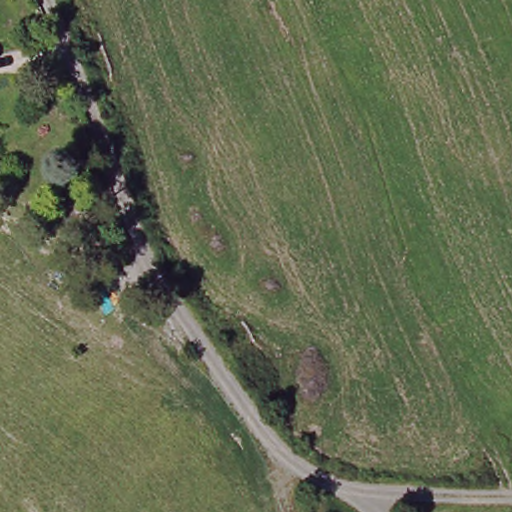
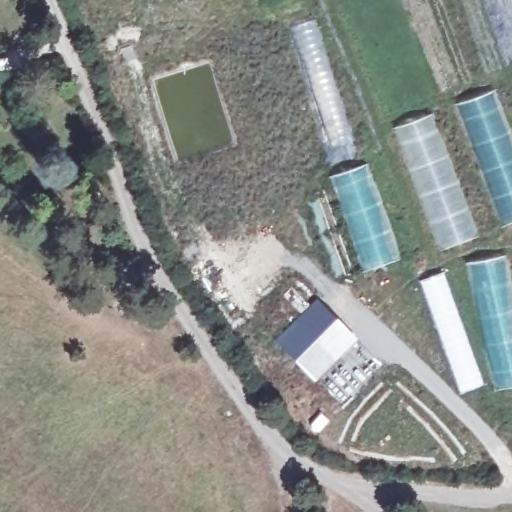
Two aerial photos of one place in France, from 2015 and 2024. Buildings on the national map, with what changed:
new [(394,109),(348,1),(351,0),(384,0),(422,97),(394,109)]
new [(441,251),(395,129),(494,92),(512,142),(512,225),(441,251)]
new [(363,271),(330,178),(367,165),(400,260),(363,271)]
new [(467,264),(512,255),(512,388),(496,391),(467,264)]
new [(445,271),(485,385),(460,395),(419,280),(445,271)]
new [(317,298),(359,339),(315,381),(275,340),(317,298)]

